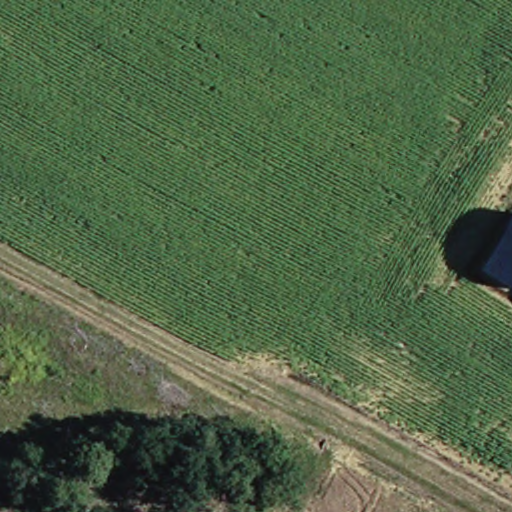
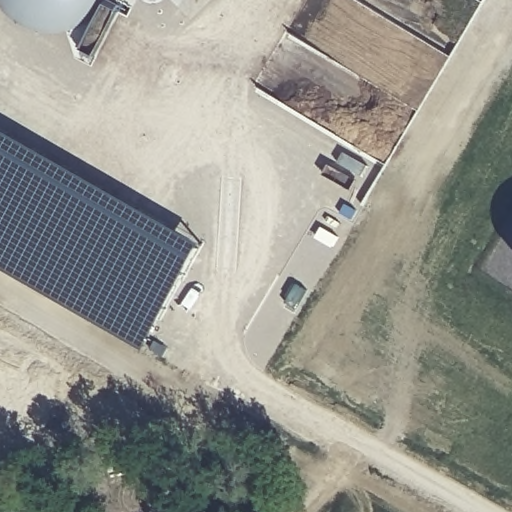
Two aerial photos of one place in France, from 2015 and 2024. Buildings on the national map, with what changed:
new [(0,268),(0,128),(203,246),(142,351),(0,268)]

